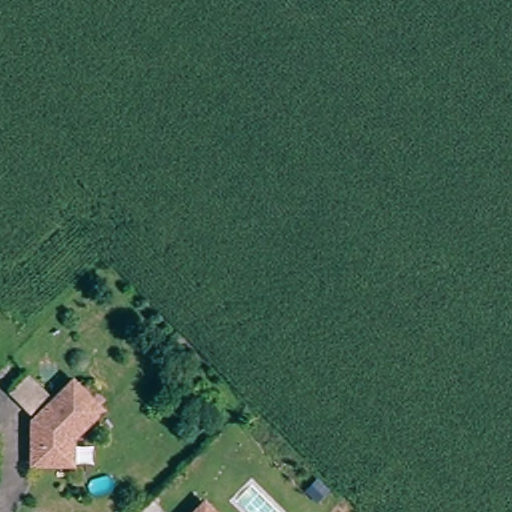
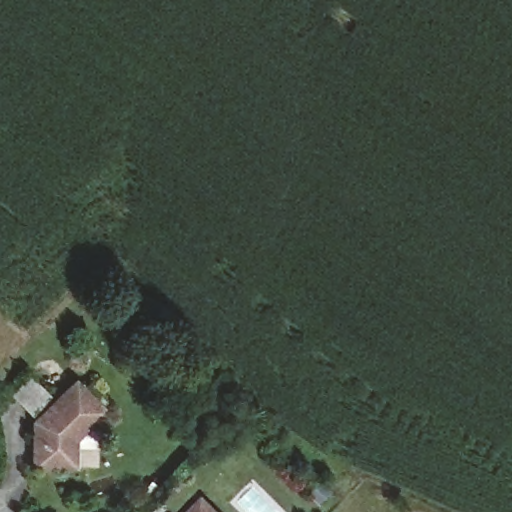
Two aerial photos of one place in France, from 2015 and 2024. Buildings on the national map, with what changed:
unchanged [(36,377),(49,393),(30,409),(17,394),(36,377)]
unchanged [(72,465),(32,460),(37,417),(81,381),(106,413),(75,438),(72,465)]
unchanged [(222,512),(197,512),(210,500),(222,512)]

